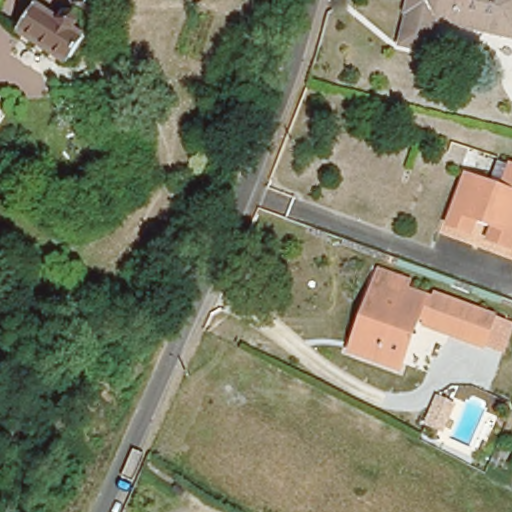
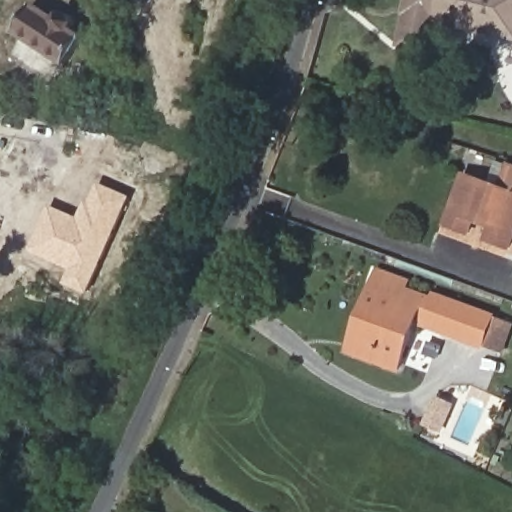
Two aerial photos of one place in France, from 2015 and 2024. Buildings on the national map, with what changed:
unchanged [(412,25),(418,0),(512,0),(512,30),(448,14),(443,32),(441,44),(410,36),(412,25)]
unchanged [(73,13),(80,18),(71,31),(84,40),(66,66),(15,32),(32,7),(61,23),(73,13)]
unchanged [(509,244),(488,237),(494,218),(476,212),(470,231),(445,224),(461,173),(492,182),(497,168),(500,156),(511,160),(512,160),(512,234),(509,244)]
new [(133,198),(89,296),(65,284),(70,269),(30,252),(50,205),(79,218),(88,200),(91,202),(100,184),(133,198)]
unchanged [(364,317),(377,286),(405,297),(409,286),(436,296),(438,292),(497,314),(512,319),(512,330),(509,343),(506,353),(487,346),(421,324),(402,370),(363,354),(350,350),(364,317)]
unchanged [(439,420),(442,414),(457,421),(452,429),(445,444),(431,437),(439,420)]

